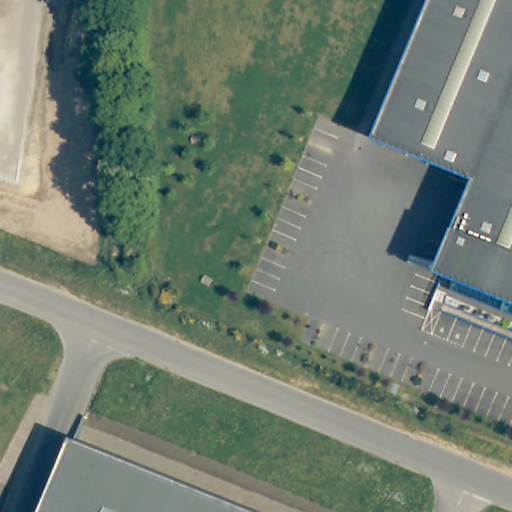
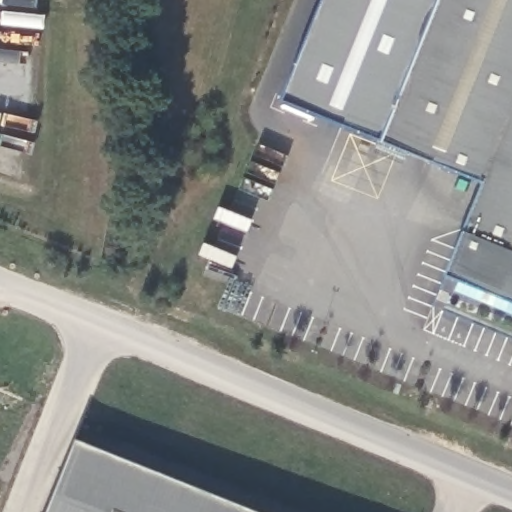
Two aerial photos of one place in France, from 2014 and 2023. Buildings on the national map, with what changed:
new [(384,143),(280,102),(322,0),(440,0),(384,143)]
unchanged [(485,187),(384,143),(440,0),(512,0),(512,306),(447,279),(485,187)]
unchanged [(255,512),(46,512),(75,440),(255,512)]

